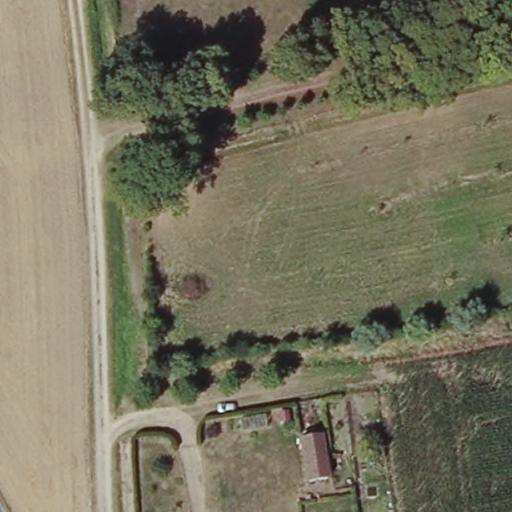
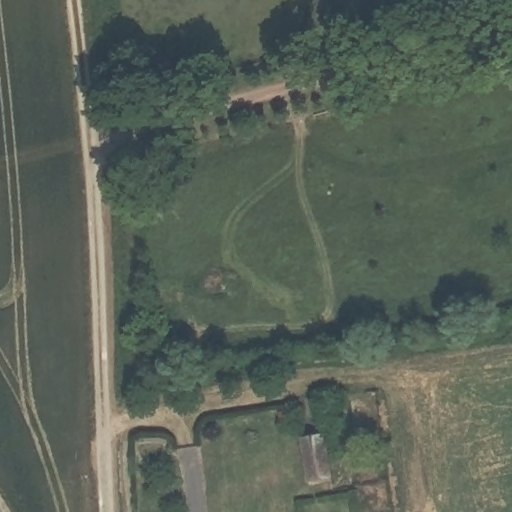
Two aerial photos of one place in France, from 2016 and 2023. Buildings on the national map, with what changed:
unchanged [(329,479),(306,482),(299,438),(324,434),(329,479)]

